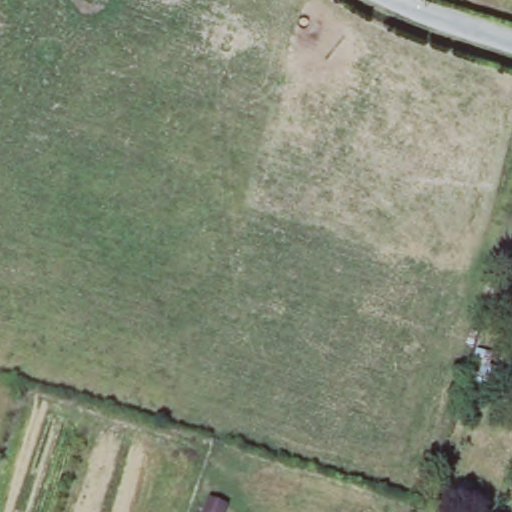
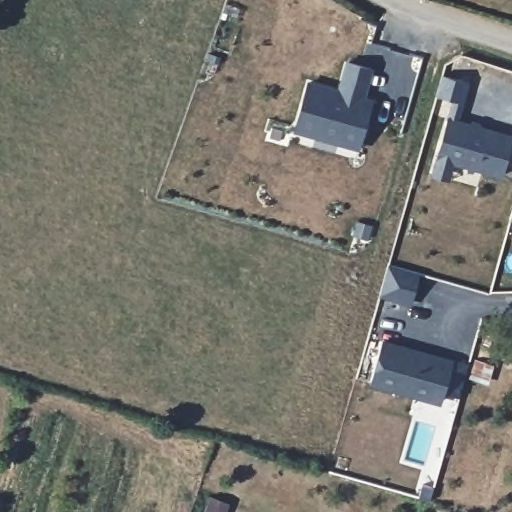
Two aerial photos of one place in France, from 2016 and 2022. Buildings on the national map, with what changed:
new [(337,96),(345,67),(369,73),(361,102),(369,105),(356,153),(337,147),(339,141),(313,134),(311,140),(293,135),(306,87),(337,96)]
new [(452,105),(451,104),(434,99),(439,79),(465,87),(460,107),(454,125),(510,141),(498,181),(450,167),(446,184),(430,179),(435,162),(446,122),(452,105)]
new [(358,222),(372,226),(368,240),(355,236),(358,222)]
new [(390,268),(420,277),(415,293),(411,307),(381,299),(386,285),(390,268)]
new [(460,398),(443,393),(440,402),(371,383),(383,342),(452,362),(469,367),(460,398)]
new [(227,512),(207,512),(211,501),(229,507),(227,512)]

